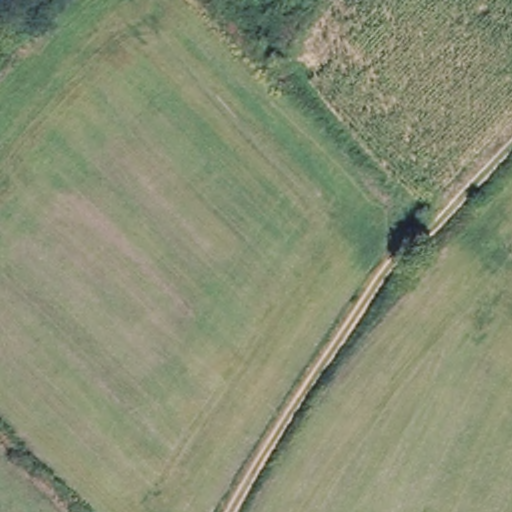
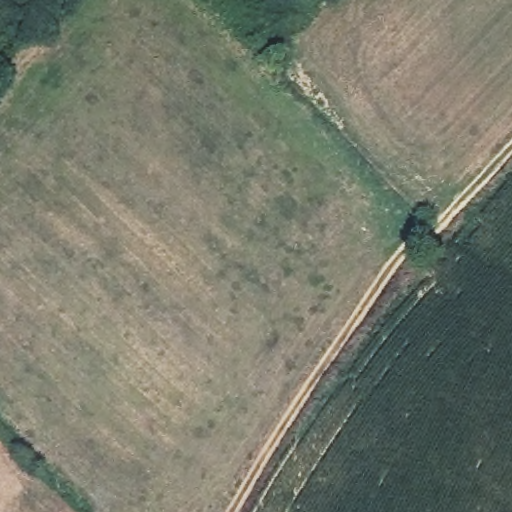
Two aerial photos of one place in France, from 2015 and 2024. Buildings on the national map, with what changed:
[]

